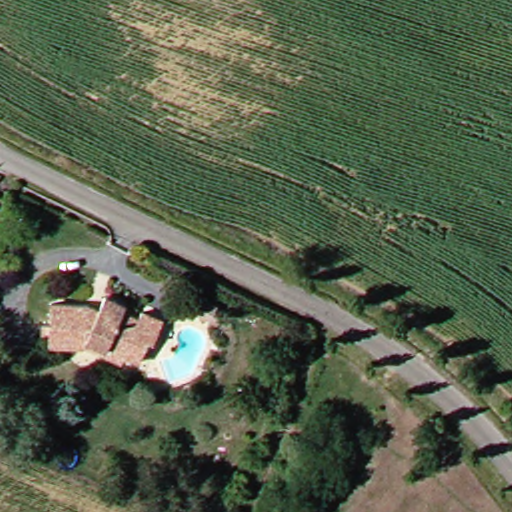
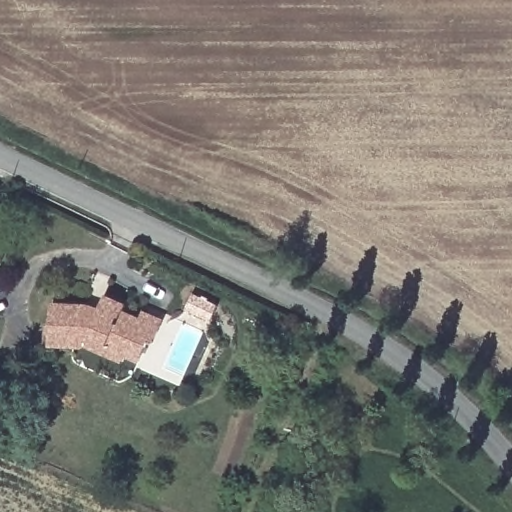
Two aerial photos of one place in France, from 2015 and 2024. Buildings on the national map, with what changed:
unchanged [(82,351),(44,351),(46,308),(81,310),(81,317),(90,321),(99,298),(119,307),(117,313),(134,321),(136,315),(156,323),(147,346),(142,345),(134,365),(121,360),(117,367),(82,351)]

